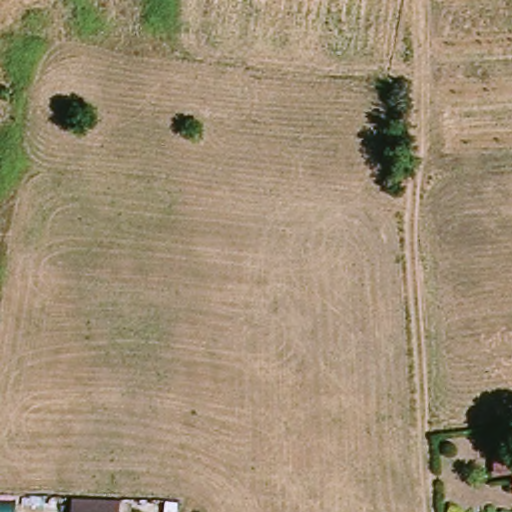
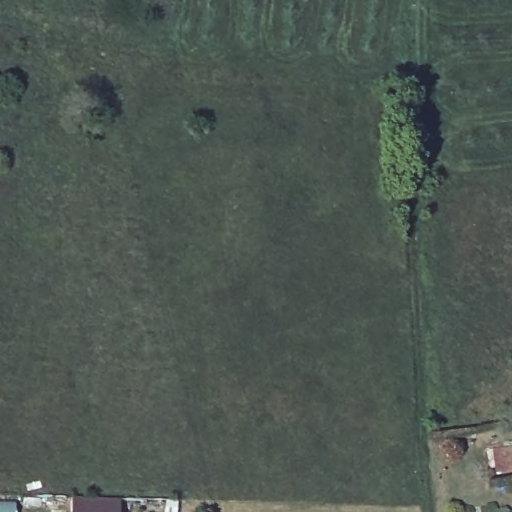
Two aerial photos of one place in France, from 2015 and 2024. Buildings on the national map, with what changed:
unchanged [(71,504),(119,506),(119,512),(71,512),(71,504)]

